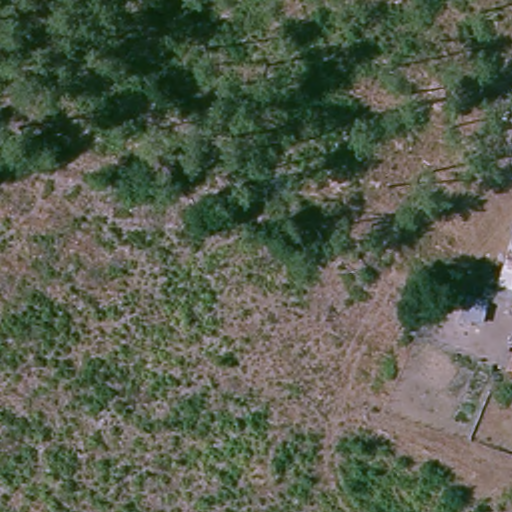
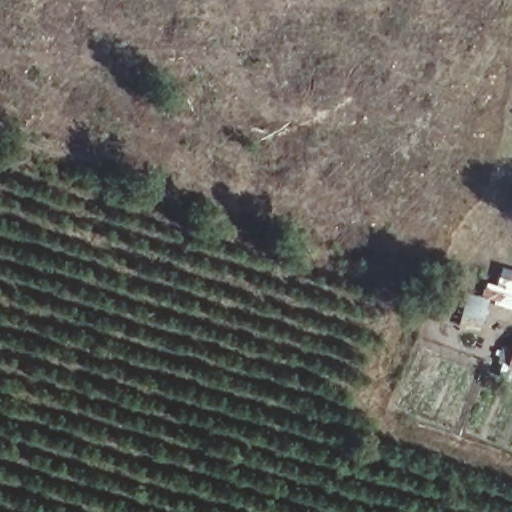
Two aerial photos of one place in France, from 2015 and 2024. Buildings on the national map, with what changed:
unchanged [(512,257),(512,281),(505,279),(512,257)]
unchanged [(512,347),(512,374),(504,371),(512,347)]

